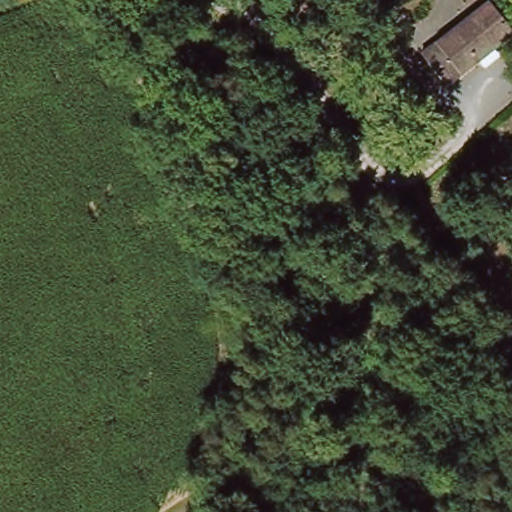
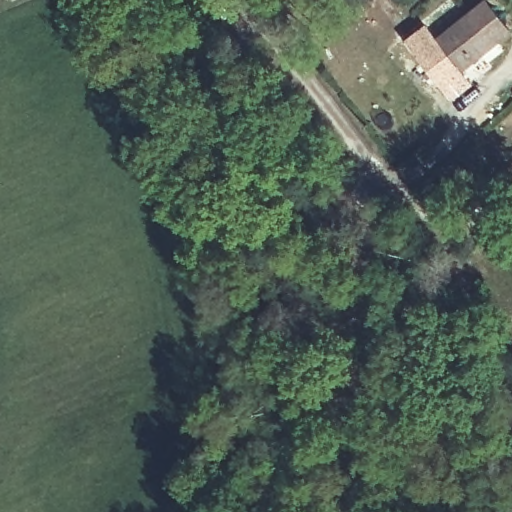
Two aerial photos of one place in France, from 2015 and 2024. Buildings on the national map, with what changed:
unchanged [(485,0),(512,31),(512,33),(447,88),(420,49),(478,0),(485,0)]

